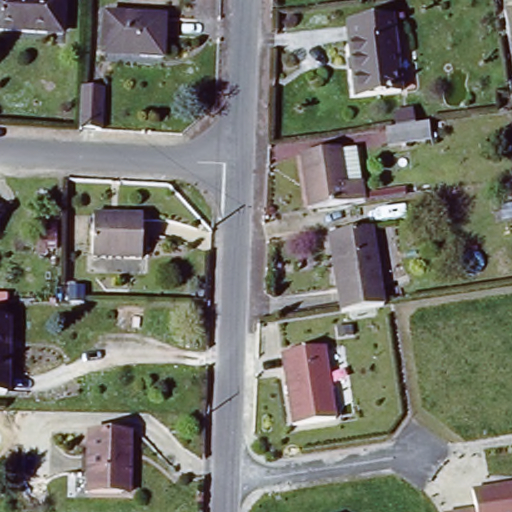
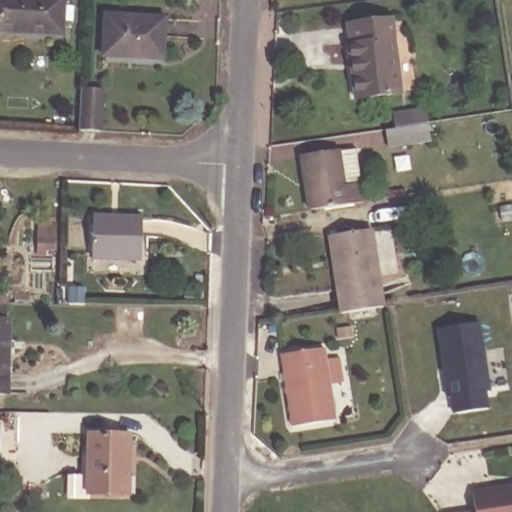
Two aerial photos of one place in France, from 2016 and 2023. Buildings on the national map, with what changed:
unchanged [(52,28),(52,31),(0,27),(0,0),(71,0),(67,29),(52,28)]
unchanged [(356,41),(357,41),(355,20),(399,14),(407,86),(362,93),(356,41)]
unchanged [(109,16),(168,21),(165,60),(105,55),(109,16)]
unchanged [(87,128),(89,86),(110,88),(107,129),(87,128)]
unchanged [(429,111),(432,126),(389,134),(387,119),(429,111)]
unchanged [(305,148),(342,140),(342,146),(359,143),(369,197),(314,207),(305,148)]
unchanged [(95,213),(145,216),(144,258),(95,255),(95,213)]
unchanged [(334,230),(375,222),(388,300),(347,307),(334,230)]
unchanged [(11,331),(14,331),(11,363),(0,363),(0,312),(12,313),(11,331)]
new [(480,319),(489,388),(485,389),(487,406),(454,411),(452,394),(448,395),(438,325),(480,319)]
unchanged [(325,346),(337,419),(290,427),(280,352),(325,346)]
unchanged [(8,403),(0,402),(0,363),(11,363),(8,403)]
unchanged [(97,491),(99,431),(140,432),(138,475),(138,493),(130,492),(97,491)]
unchanged [(472,511),(469,494),(512,487),(512,512),(464,512),(472,511)]

